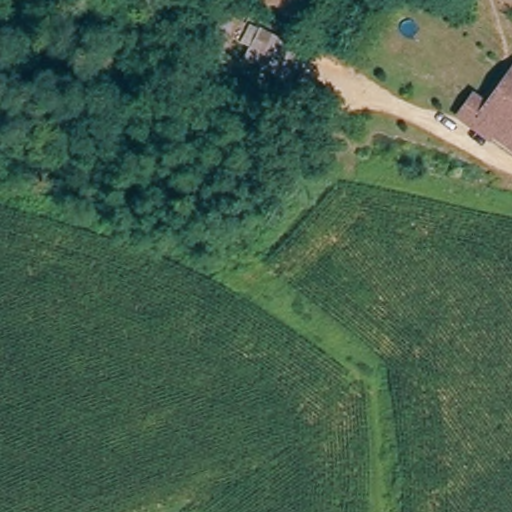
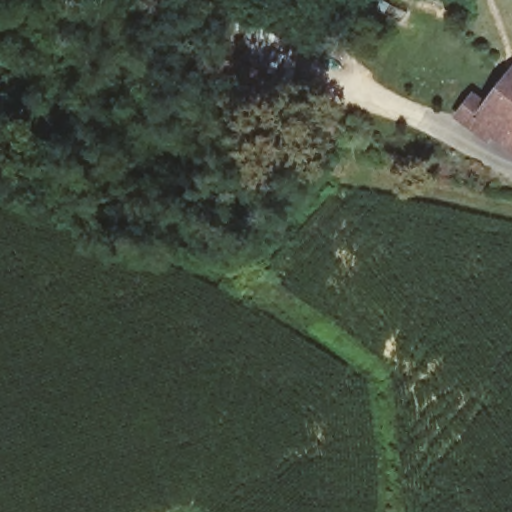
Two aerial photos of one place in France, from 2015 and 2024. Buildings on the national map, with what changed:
unchanged [(249,17),(264,26),(261,34),(307,57),(291,86),(231,55),(249,17)]
unchanged [(478,121),(512,70),(512,143),(478,121)]

